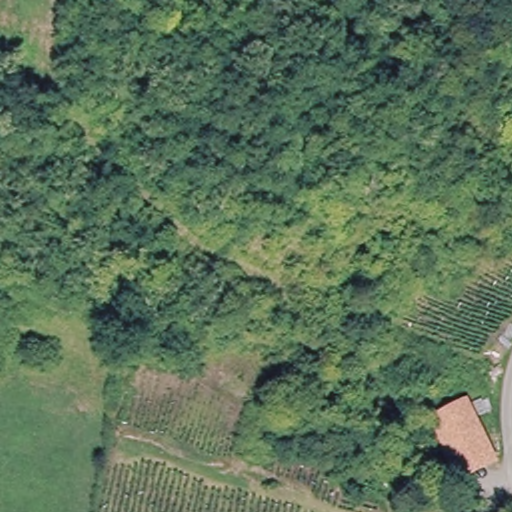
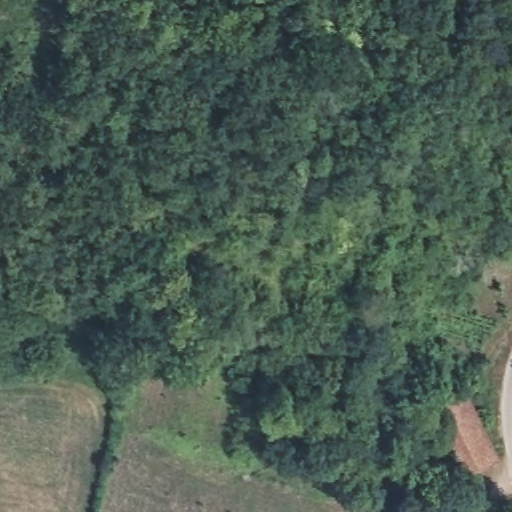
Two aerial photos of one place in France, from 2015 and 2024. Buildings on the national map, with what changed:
unchanged [(462,482),(427,417),(460,400),(469,417),(495,466),(482,471),(462,482)]

